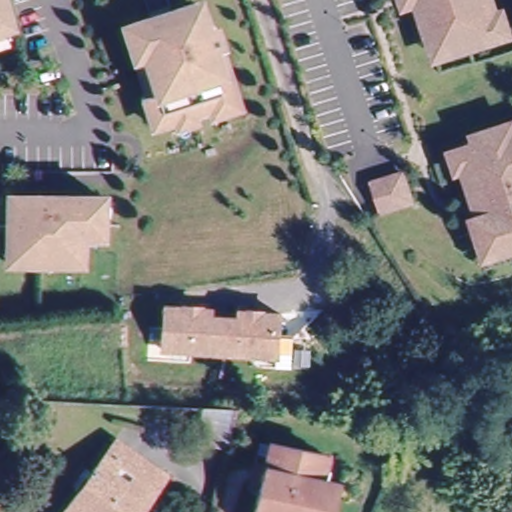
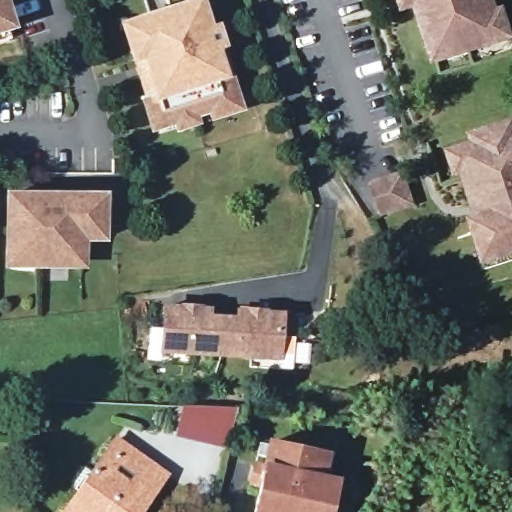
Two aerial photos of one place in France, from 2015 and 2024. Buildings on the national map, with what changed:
unchanged [(15,27),(12,28),(15,36),(0,41),(0,0),(7,0),(15,27)]
unchanged [(404,2),(404,0),(413,0),(404,2)]
unchanged [(434,48),(418,0),(494,0),(499,15),(507,13),(512,26),(512,33),(473,45),(470,36),(464,38),(467,47),(441,55),(438,47),(434,48)]
unchanged [(173,120),(154,126),(145,96),(147,96),(124,27),(134,23),(193,4),(196,13),(201,11),(208,31),(215,28),(221,47),(219,47),(228,76),(222,78),(225,87),(231,86),(239,108),(210,118),(208,109),(195,113),(198,124),(177,131),(173,120)]
unchanged [(482,246),(474,220),(480,218),(467,178),(465,172),(456,175),(449,153),(447,148),(466,142),(468,147),(477,144),(474,136),(512,124),(512,260),(489,267),(483,269),(480,261),(476,248),(482,246)]
unchanged [(412,203),(379,213),(370,184),(402,174),(412,203)]
unchanged [(1,250),(0,250),(0,193),(30,194),(43,194),(43,192),(93,193),(92,222),(91,222),(90,232),(90,243),(72,242),(72,251),(69,251),(69,260),(1,259),(1,250)]
unchanged [(278,358),(164,351),(166,307),(208,310),(208,318),(237,320),(238,312),(281,315),(278,358)]
new [(237,408),(227,446),(174,434),(180,406),(237,408)]
unchanged [(252,472),(256,454),(265,456),(267,446),(257,444),(260,433),(270,435),(270,433),(325,445),(331,447),(326,471),(333,473),(325,512),(253,512),(261,474),(252,472)]
unchanged [(73,476),(90,457),(97,464),(123,436),(162,472),(168,478),(137,512),(53,512),(80,482),(73,476)]

